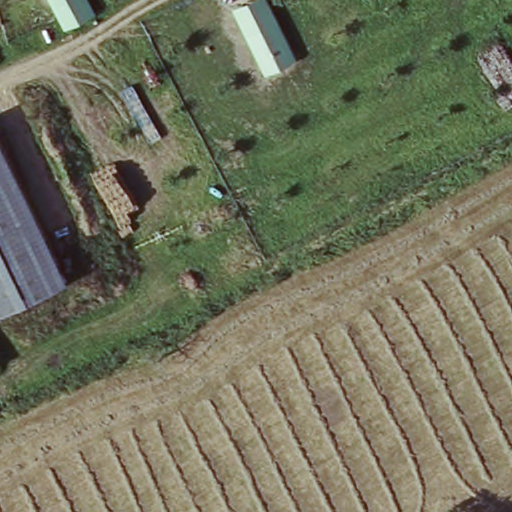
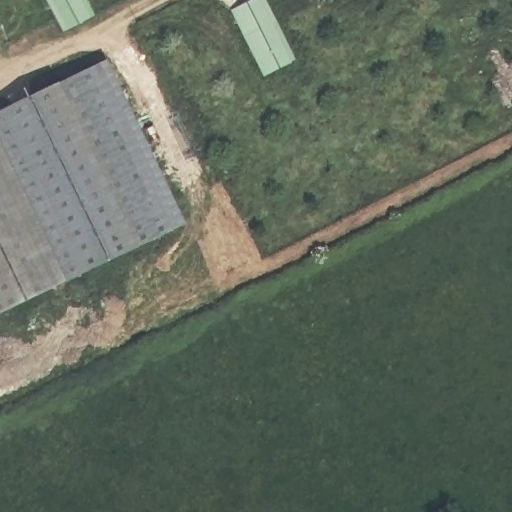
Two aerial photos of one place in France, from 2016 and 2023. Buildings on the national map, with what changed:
unchanged [(95,13),(64,31),(46,0),(87,0),(95,13)]
unchanged [(254,0),(265,0),(294,58),(264,75),(231,11),(254,0)]
new [(106,55),(182,219),(66,280),(0,143),(0,107),(106,55)]
unchanged [(66,280),(0,311),(0,143),(66,280)]

